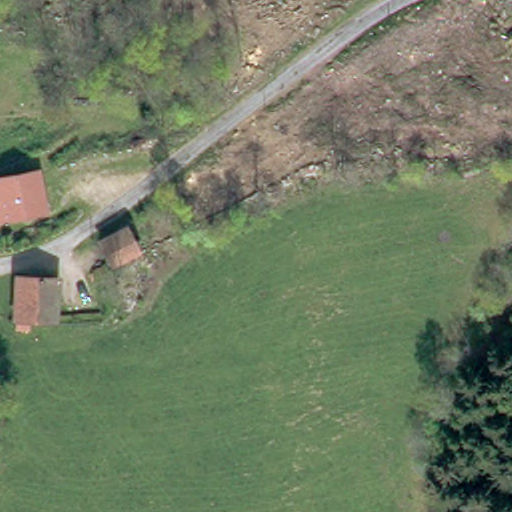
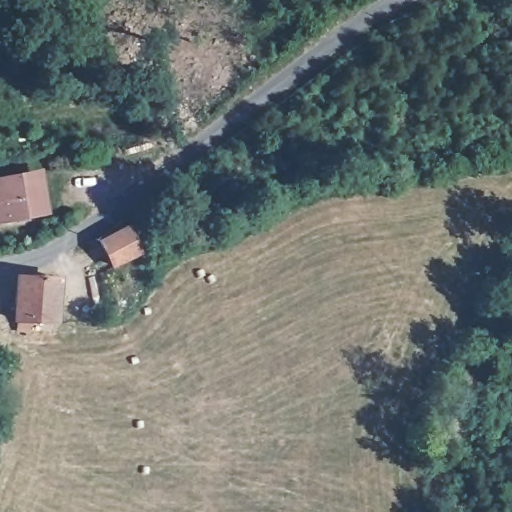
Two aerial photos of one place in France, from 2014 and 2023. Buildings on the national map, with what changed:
unchanged [(33,173),(39,210),(1,217),(0,218),(0,179),(33,173)]
unchanged [(108,261),(94,240),(119,223),(133,244),(108,261)]
unchanged [(54,322),(31,322),(28,322),(27,332),(15,332),(15,322),(13,322),(13,278),(43,279),(53,280),(54,322)]

